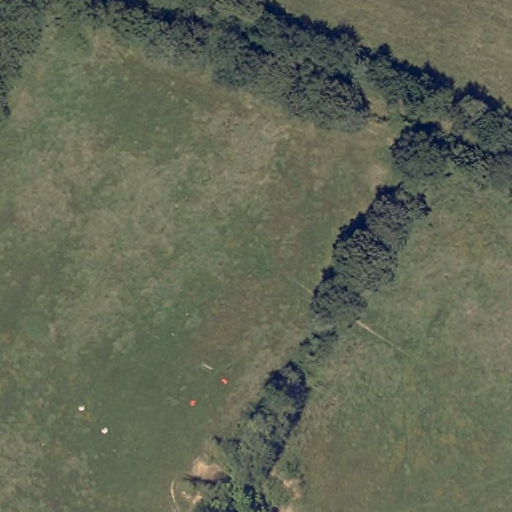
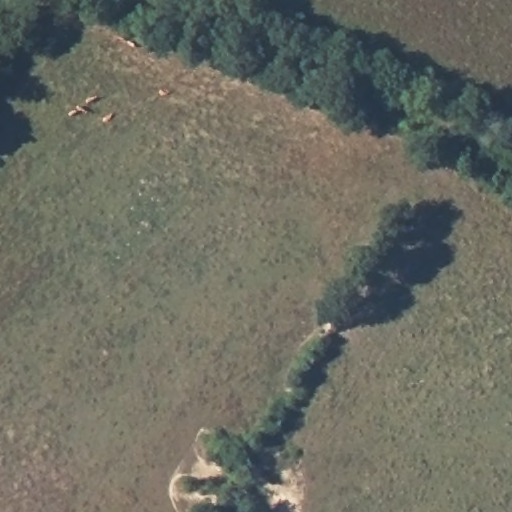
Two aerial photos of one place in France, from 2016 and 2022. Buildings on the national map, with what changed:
[]

